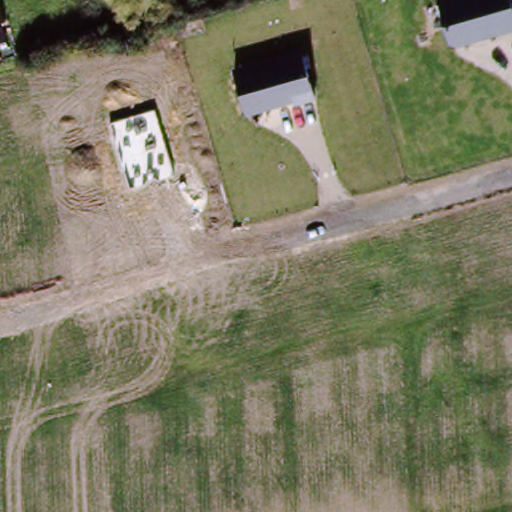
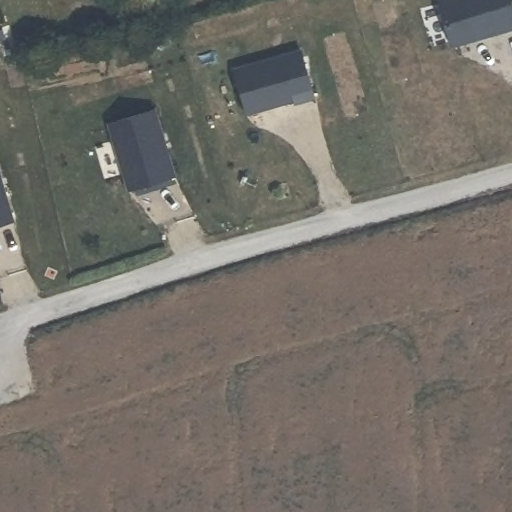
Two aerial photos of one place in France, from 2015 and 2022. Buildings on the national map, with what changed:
unchanged [(452,45),(440,0),(510,0),(512,5),(512,28),(452,45)]
unchanged [(315,94),(246,114),(233,70),(302,50),(315,94)]
new [(178,176),(129,192),(108,124),(157,110),(178,176)]
new [(13,221),(0,224),(0,179),(13,221)]

